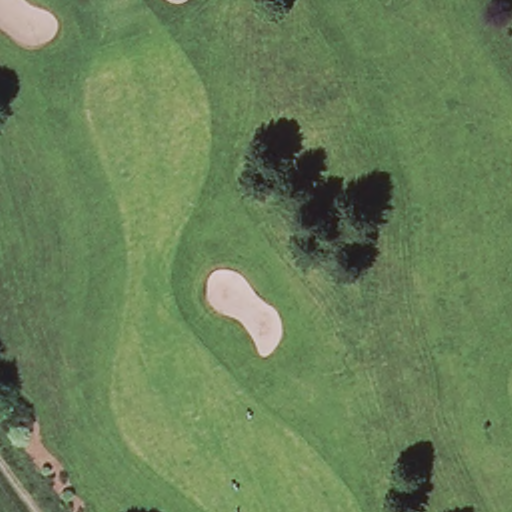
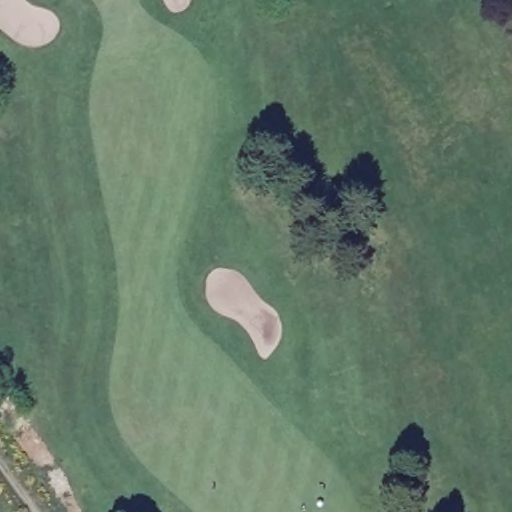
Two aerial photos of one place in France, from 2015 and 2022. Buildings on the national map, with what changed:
[]

